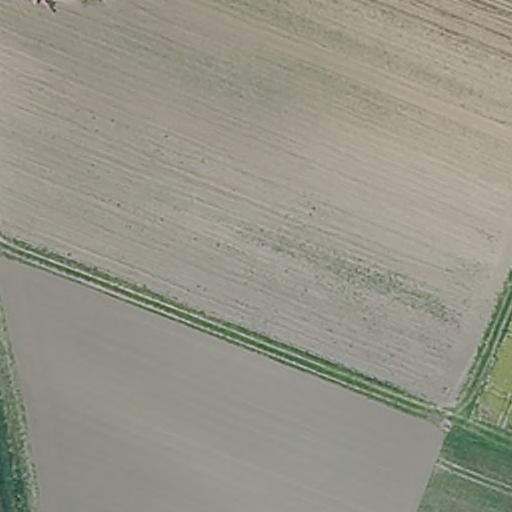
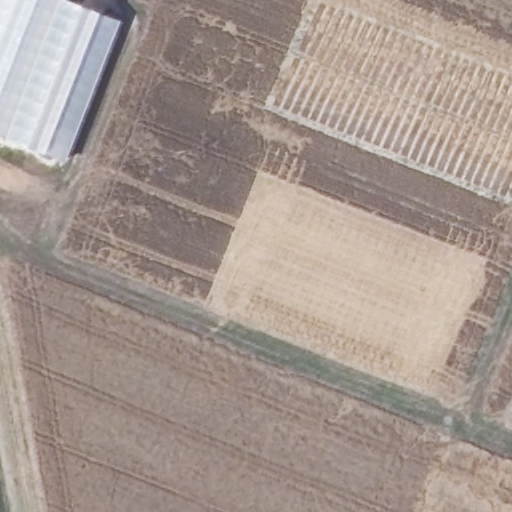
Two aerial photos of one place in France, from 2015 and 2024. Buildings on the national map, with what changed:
new [(0,137),(0,0),(63,0),(118,21),(63,161),(0,137)]

